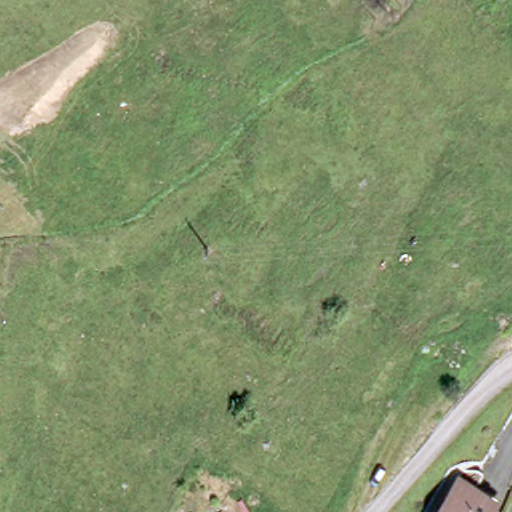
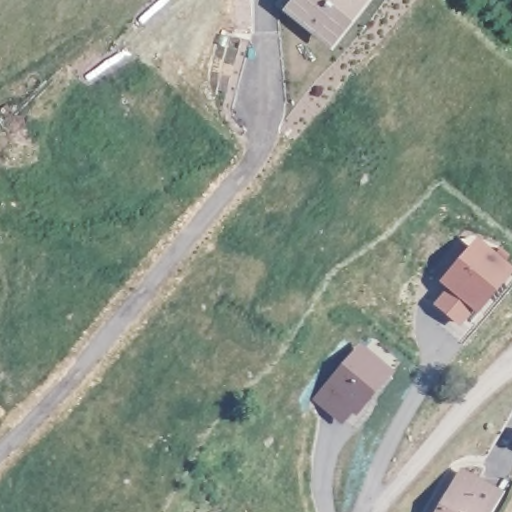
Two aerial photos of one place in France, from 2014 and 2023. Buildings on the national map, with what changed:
new [(289,0),(354,0),(330,29),(320,19),(312,25),(286,4),(289,0)]
new [(447,289),(439,281),(477,237),(512,267),(512,273),(477,315),(472,311),(459,327),(432,305),(447,289)]
new [(310,399),(360,343),(394,373),(342,427),(310,399)]
unchanged [(493,497),(505,503),(499,512),(451,512),(467,483),(493,497)]

